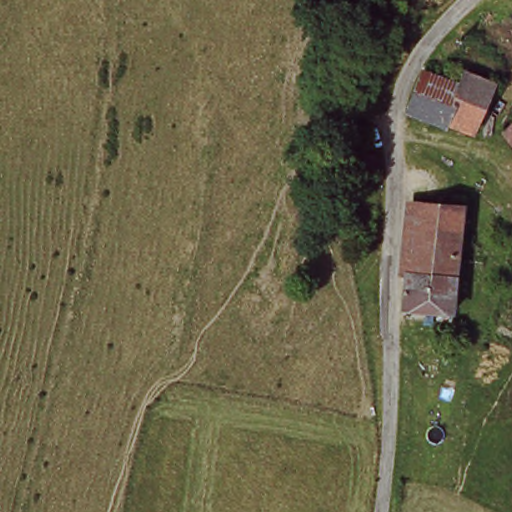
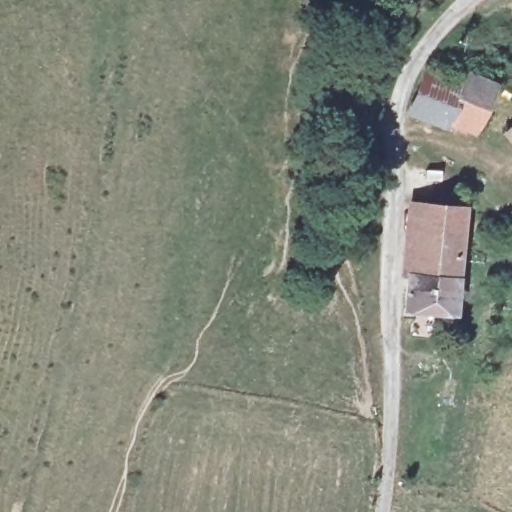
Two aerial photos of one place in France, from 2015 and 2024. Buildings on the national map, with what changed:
unchanged [(462,88),(468,77),(491,86),(477,120),(454,114),(450,125),(407,112),(419,77),(462,88)]
unchanged [(451,316),(437,315),(404,311),(415,214),(464,210),(451,316)]

